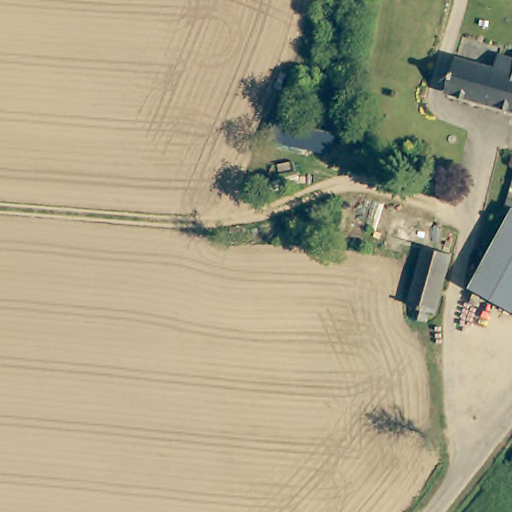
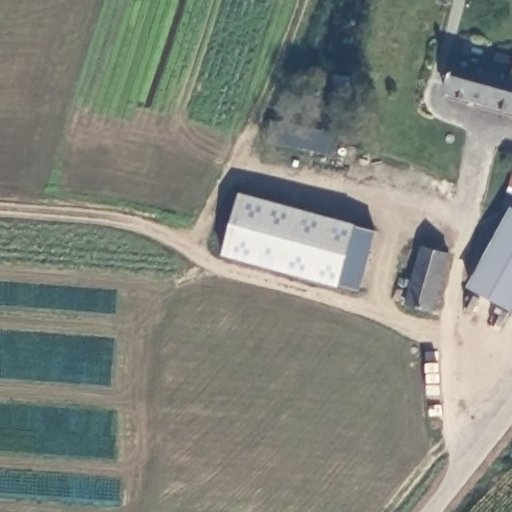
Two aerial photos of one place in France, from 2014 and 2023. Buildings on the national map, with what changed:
unchanged [(453,53),(493,64),(497,50),(512,54),(512,108),(443,89),(453,53)]
unchanged [(337,74),(340,63),(356,66),(353,77),(337,74)]
unchanged [(272,128),(276,109),(338,122),(334,140),(272,128)]
new [(359,291),(339,287),(222,254),(241,192),(354,224),(376,231),(359,291)]
unchanged [(475,285),(512,222),(512,306),(511,309),(475,285)]
unchanged [(417,229),(450,234),(441,295),(431,294),(427,304),(412,302),(413,291),(405,288),(412,244),(417,229)]

